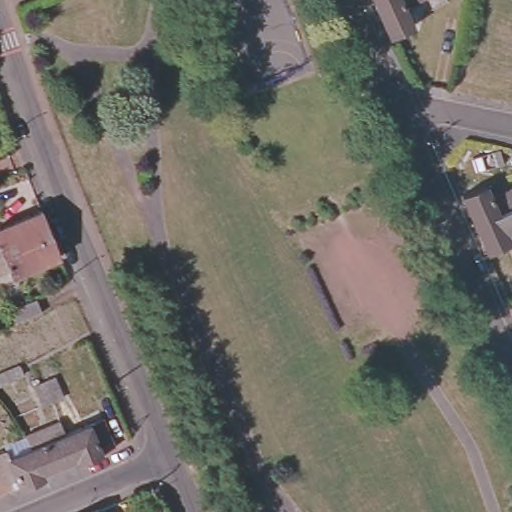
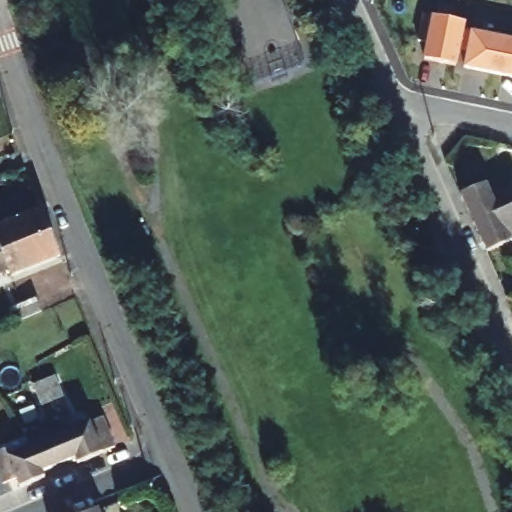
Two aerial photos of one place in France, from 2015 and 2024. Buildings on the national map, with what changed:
demolished [(400,7),(409,26),(385,37),(368,0),(370,0),(415,0),(400,7)]
new [(466,51),(460,50),(457,65),(422,58),(426,40),(418,40),(423,15),(431,15),(466,22),(464,30),(512,39),(512,77),(463,67),(466,51)]
demolished [(501,162),(478,173),(471,160),(495,150),(501,162)]
unchanged [(462,192),(487,181),(492,192),(512,184),(512,205),(475,221),(462,192)]
unchanged [(475,221),(512,205),(512,240),(488,250),(475,221)]
unchanged [(41,209),(51,232),(0,252),(0,225),(41,209)]
unchanged [(51,232),(60,255),(12,274),(10,269),(0,273),(0,252),(51,232)]
unchanged [(32,382),(42,379),(52,375),(61,396),(51,400),(41,405),(32,382)]
unchanged [(65,434),(104,418),(116,446),(77,463),(75,456),(65,434)]
unchanged [(65,434),(75,456),(41,470),(31,444),(26,433),(59,419),(65,434)]
unchanged [(20,487),(15,475),(1,480),(0,478),(0,450),(5,448),(7,455),(31,444),(41,470),(45,476),(20,487)]
unchanged [(96,512),(71,512),(92,503),(96,512)]

